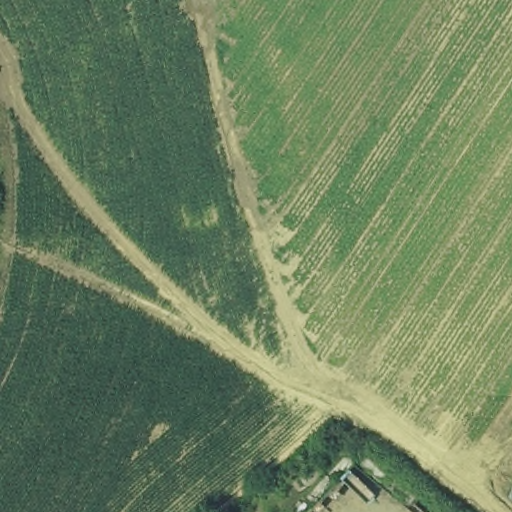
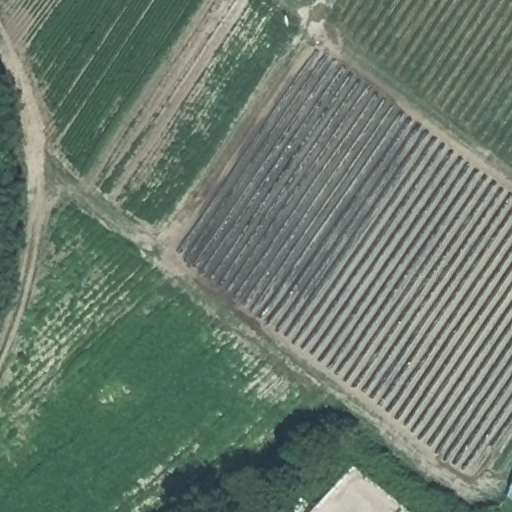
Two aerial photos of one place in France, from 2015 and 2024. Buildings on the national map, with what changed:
unchanged [(512,492),(512,501),(508,498),(512,492)]

